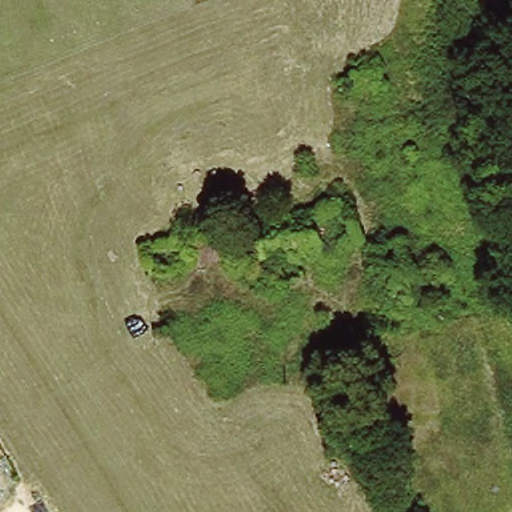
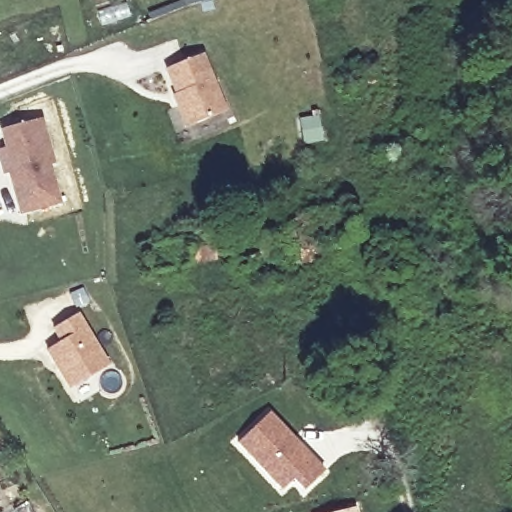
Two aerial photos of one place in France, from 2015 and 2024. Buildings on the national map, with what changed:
unchanged [(226,112),(184,129),(172,96),(175,94),(165,67),(204,52),(226,112)]
new [(58,164),(53,165),(64,202),(24,215),(12,174),(8,175),(1,151),(5,150),(9,149),(4,131),(44,119),(58,164)]
new [(64,341),(56,328),(79,313),(111,365),(73,388),(50,350),(64,341)]
new [(272,412),(325,470),(303,492),(293,481),(281,492),(237,444),(272,412)]
new [(339,512),(355,507),(356,512),(339,512)]

